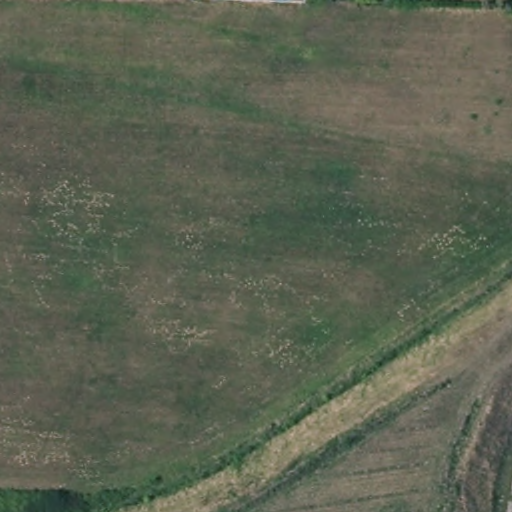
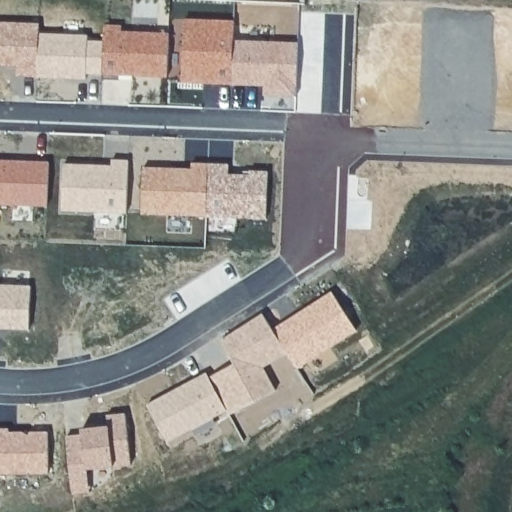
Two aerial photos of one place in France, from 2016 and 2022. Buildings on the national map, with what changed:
new [(182,82),(185,18),(235,20),(234,40),(232,84),(182,82)]
new [(39,23),(39,33),(37,77),(17,76),(17,67),(0,66),(0,22),(39,23)]
new [(120,79),(119,79),(102,79),(103,73),(104,41),(105,24),(121,24),(121,30),(169,32),(167,77),(133,75),(133,80),(120,79)]
new [(39,33),(88,35),(88,40),(104,41),(103,73),(86,72),(87,78),(37,77),(39,33)]
new [(234,40),(299,42),(297,96),(265,95),(265,85),(232,84),(234,40)]
new [(64,163),(112,165),(112,159),(129,159),(127,212),(61,210),(64,163)]
new [(48,163),(47,207),(0,206),(0,162),(48,163)]
new [(144,166),(192,168),(192,162),(209,162),(207,215),(141,213),(144,166)]
new [(209,162),(229,164),(229,174),(250,174),(250,170),(268,171),(267,218),(207,215),(209,162)]
new [(31,285),(29,329),(0,328),(0,284),(31,285)]
new [(331,292),(355,329),(297,366),(274,329),(331,292)]
new [(207,372),(227,410),(167,441),(147,403),(207,372)]
new [(73,494),(70,471),(67,436),(81,434),(81,429),(108,426),(106,414),(125,413),(131,465),(87,470),(90,492),(73,494)]
new [(8,428),(8,432),(23,431),(28,434),(30,431),(47,431),(48,472),(0,473),(0,428),(8,428)]

